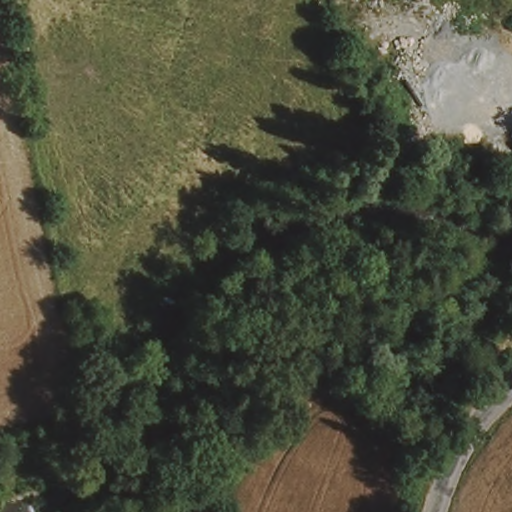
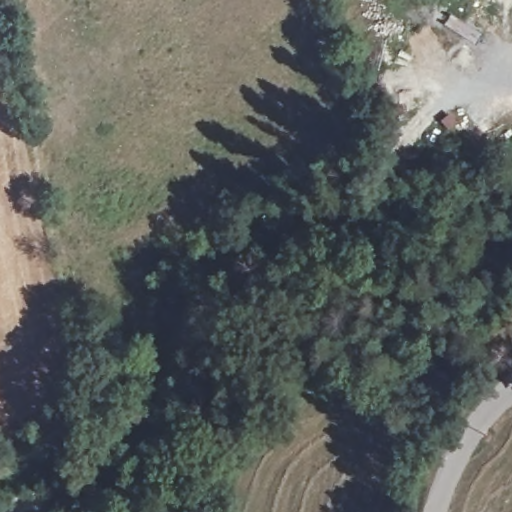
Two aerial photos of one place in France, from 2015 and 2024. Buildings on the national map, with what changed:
[]

